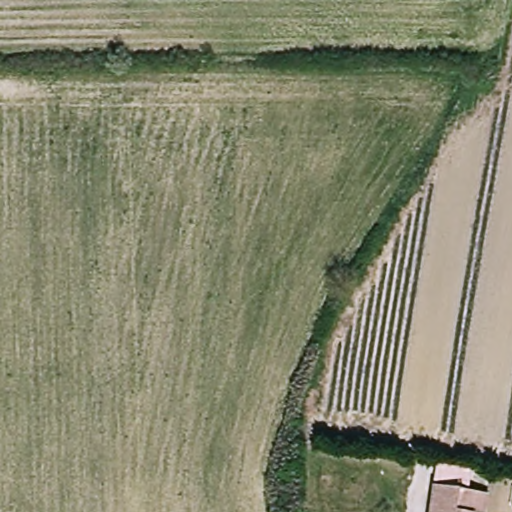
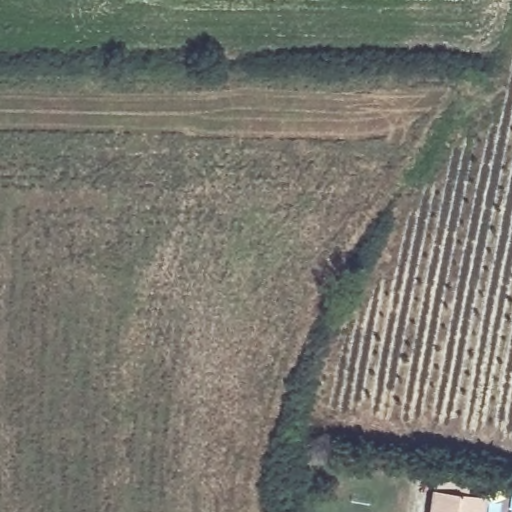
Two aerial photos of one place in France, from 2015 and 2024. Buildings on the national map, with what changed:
unchanged [(487,496),(483,512),(432,512),(438,485),(487,496)]

